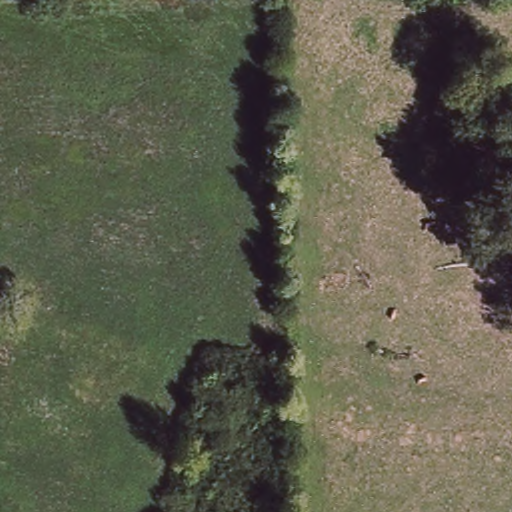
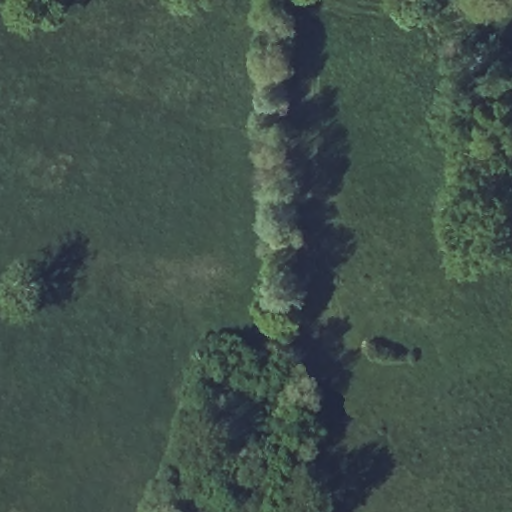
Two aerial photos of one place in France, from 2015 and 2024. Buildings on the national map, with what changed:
[]

